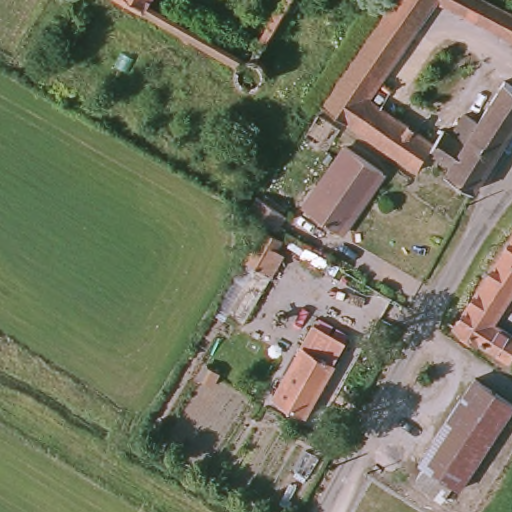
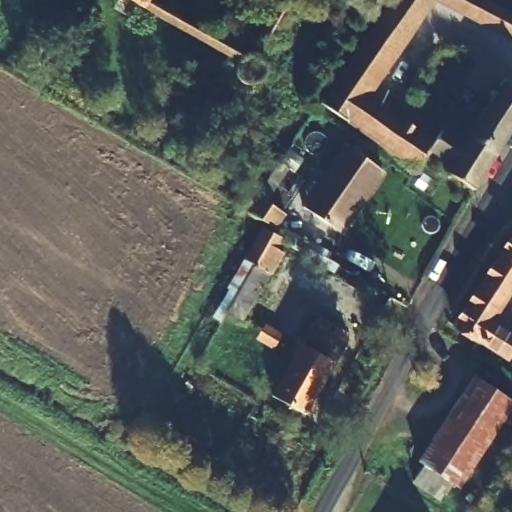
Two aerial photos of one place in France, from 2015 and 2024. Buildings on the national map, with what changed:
unchanged [(138,9),(131,4),(125,0),(143,0),(138,9)]
unchanged [(353,58),(357,52),(377,24),(393,0),(481,0),(512,17),(512,43),(437,2),(367,101),(427,147),(432,152),(414,172),(397,161),(387,154),(323,110),(319,107),(337,81),(353,58)]
unchanged [(445,137),(459,116),(474,126),(503,82),(512,88),(512,129),(480,180),(472,192),(448,178),(444,175),(450,165),(432,152),(427,147),(439,132),(445,137)]
unchanged [(339,237),(302,211),(345,149),(381,174),(339,237)]
unchanged [(280,212),(270,227),(258,221),(239,210),(250,193),(280,212)]
unchanged [(213,310),(219,301),(212,297),(233,261),(252,230),(270,240),(264,249),(270,252),(256,274),(227,320),(213,310)]
unchanged [(512,262),(497,252),(512,230),(512,262)]
unchanged [(497,252),(512,262),(512,284),(500,303),(475,287),(497,252)]
unchanged [(475,287),(500,303),(488,321),(512,336),(512,343),(503,357),(473,338),(452,324),(475,287)]
unchanged [(330,368),(332,370),(302,419),(270,400),(312,327),(342,346),(330,368)]
unchanged [(408,481),(420,463),(412,458),(468,374),(509,402),(453,486),(447,482),(435,498),(408,481)]

